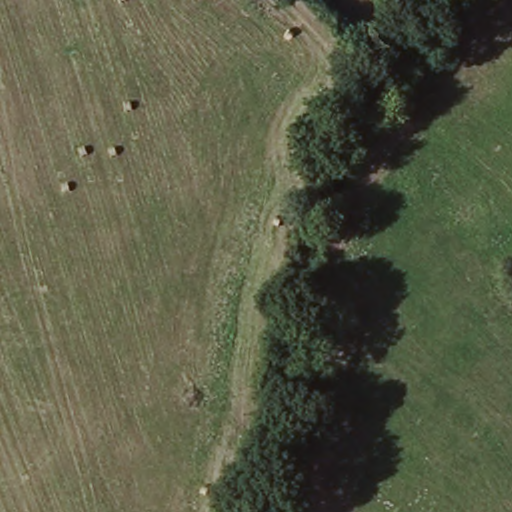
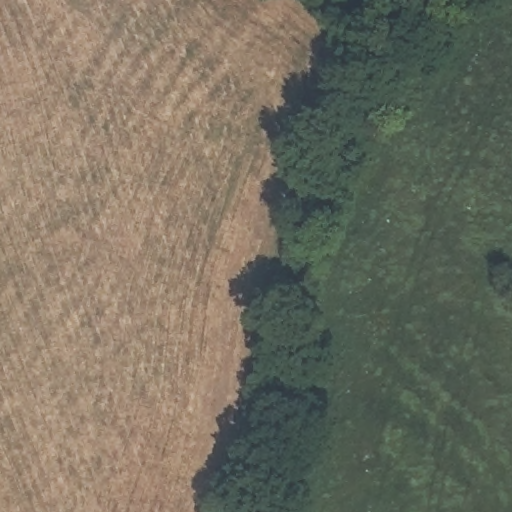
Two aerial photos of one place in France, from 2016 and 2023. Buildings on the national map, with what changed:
[]

